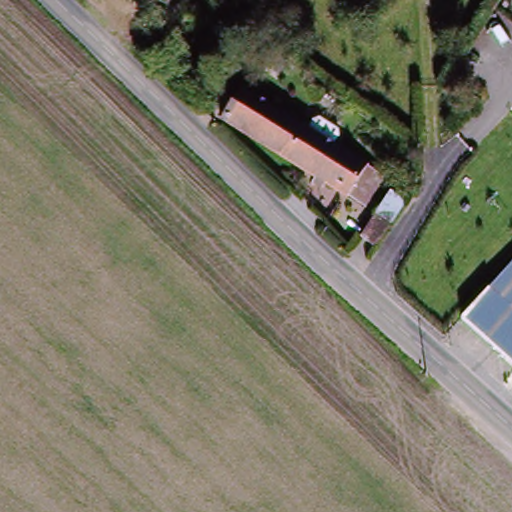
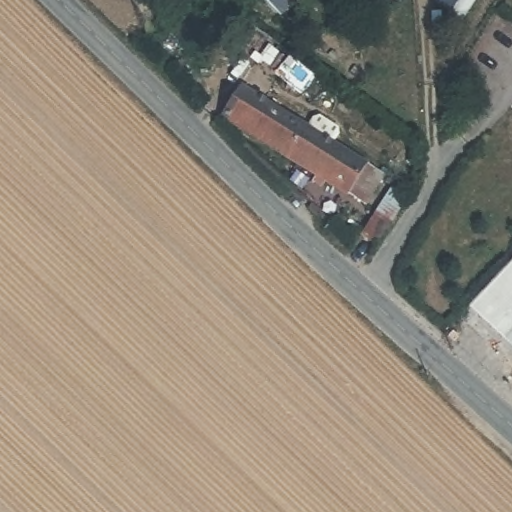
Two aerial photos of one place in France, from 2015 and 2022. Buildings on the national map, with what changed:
unchanged [(267,0),(269,0),(268,1),(267,0)]
unchanged [(247,122),(242,124),(225,111),(244,86),(365,173),(350,198),(247,122)]
unchanged [(330,239),(345,216),(360,226),(342,248),(330,239)]
unchanged [(512,269),(512,358),(467,319),(512,269)]

